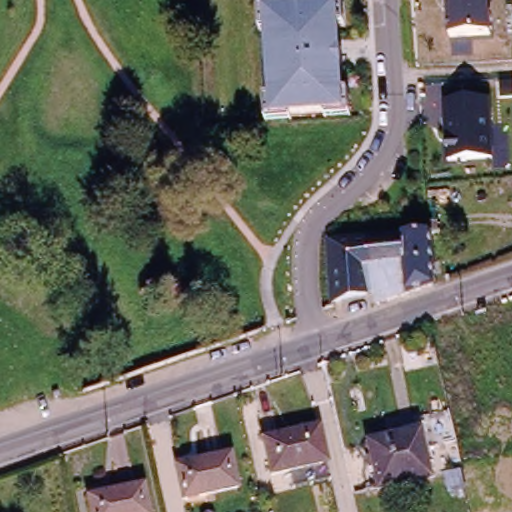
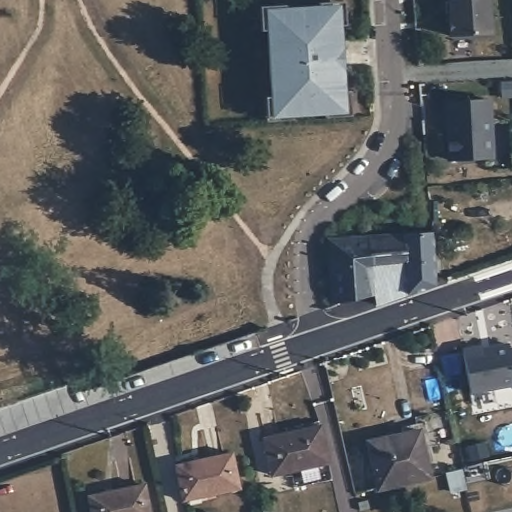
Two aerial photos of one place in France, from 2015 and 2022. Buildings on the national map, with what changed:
unchanged [(489,0),(492,34),(448,38),(445,0),(489,0)]
unchanged [(338,5),(345,114),(268,119),(264,9),(338,5)]
unchanged [(442,101),(490,99),(495,160),(447,164),(442,101)]
unchanged [(344,234),(388,230),(405,229),(427,227),(426,222),(425,214),(437,213),(438,226),(430,227),(432,237),(434,279),(374,300),(372,289),(334,297),(328,273),(327,235),(344,234)]
new [(482,347),(482,351),(511,345),(512,350),(512,385),(473,393),(465,350),(482,347)]
unchanged [(325,461),(268,473),(260,436),(317,424),(325,461)]
unchanged [(416,429),(427,477),(375,488),(364,441),(416,429)]
unchanged [(235,484),(181,497),(173,464),(227,452),(235,484)]
unchanged [(85,495),(138,484),(144,512),(88,512),(85,495)]

